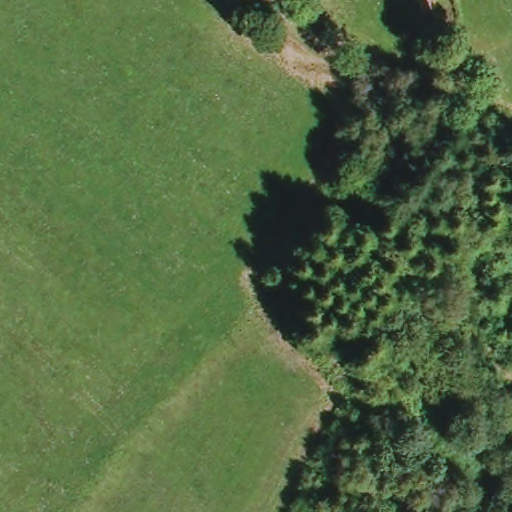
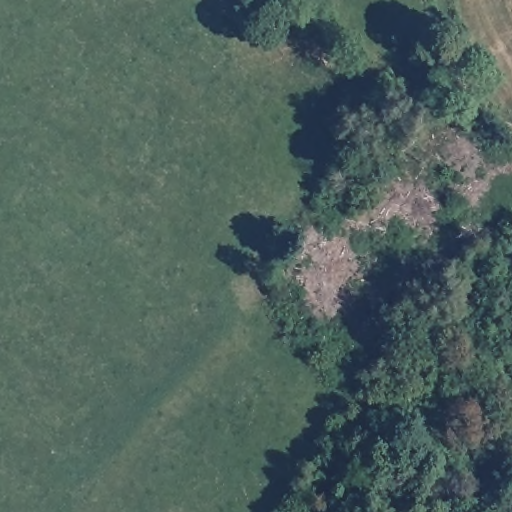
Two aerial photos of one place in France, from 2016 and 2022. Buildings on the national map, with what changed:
unchanged [(507,367),(512,365),(512,386),(511,386),(507,367)]

